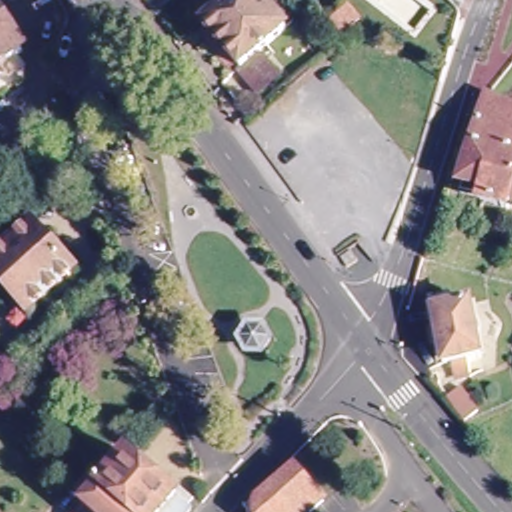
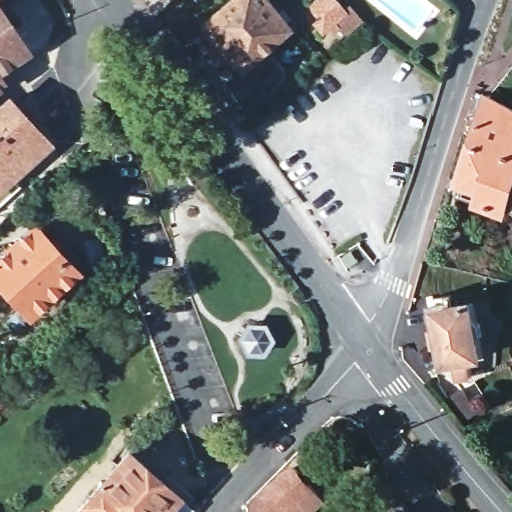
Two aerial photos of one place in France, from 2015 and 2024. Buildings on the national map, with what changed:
unchanged [(263,0),(292,35),(266,57),(287,82),(263,101),(242,76),(246,74),(210,30),(209,29),(243,0),(263,0)]
new [(327,30),(321,35),(300,10),(312,0),(334,0),(342,10),(350,4),(363,19),(344,35),(338,29),(331,35),(327,30)]
demolished [(26,54),(0,72),(0,14),(26,54)]
new [(26,54),(0,72),(0,14),(26,54)]
demolished [(4,80),(0,83),(0,75),(4,80)]
new [(4,80),(0,83),(0,75),(4,80)]
unchanged [(461,177),(488,91),(512,103),(512,191),(508,204),(480,195),(460,190),(464,178),(461,177)]
new [(9,94),(54,142),(14,179),(19,185),(0,202),(0,101),(9,94)]
unchanged [(73,274),(30,312),(0,280),(0,258),(32,229),(73,274)]
unchanged [(358,262),(347,268),(341,258),(351,251),(358,262)]
unchanged [(455,384),(452,369),(445,370),(441,353),(436,353),(433,335),(438,333),(435,316),(432,303),(451,300),(453,312),(471,308),(475,325),(480,330),(482,340),(479,346),(482,363),(467,365),(470,375),(470,381),(455,384)]
unchanged [(264,321),(271,335),(262,349),(247,348),(240,334),(248,320),(264,321)]
unchanged [(478,412),(465,421),(448,399),(462,389),(478,412)]
unchanged [(129,448),(177,491),(176,492),(191,505),(186,512),(72,512),(129,448)]
unchanged [(328,497),(311,512),(261,512),(260,507),(260,506),(260,498),(261,495),(265,491),(299,462),(328,497)]

